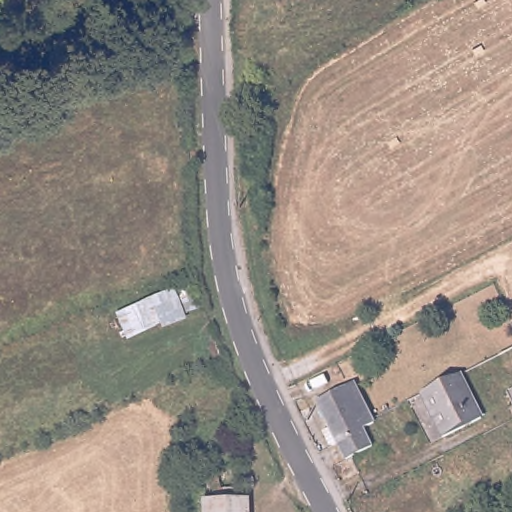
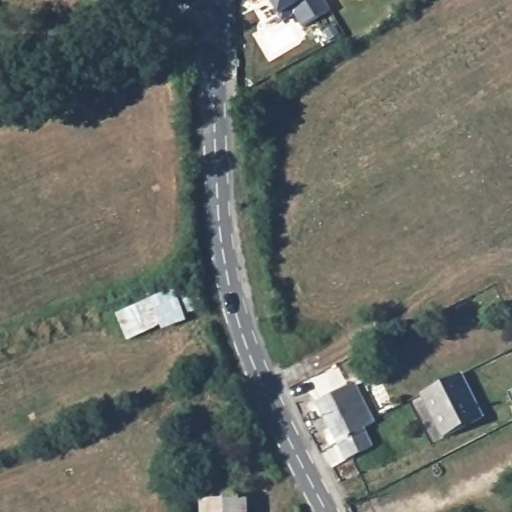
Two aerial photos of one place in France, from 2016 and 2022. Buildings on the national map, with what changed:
new [(293,16),(282,22),(277,16),(267,0),(323,0),(330,11),(301,29),(293,16)]
unchanged [(460,374),(482,417),(443,437),(421,394),(460,374)]
unchanged [(337,443),(331,447),(322,431),(330,427),(318,403),(355,384),(373,419),(375,423),(365,428),(374,445),(346,460),(337,443)]
unchanged [(512,389),(512,401),(507,392),(512,389)]
unchanged [(246,500),(246,512),(201,512),(201,501),(246,500)]

